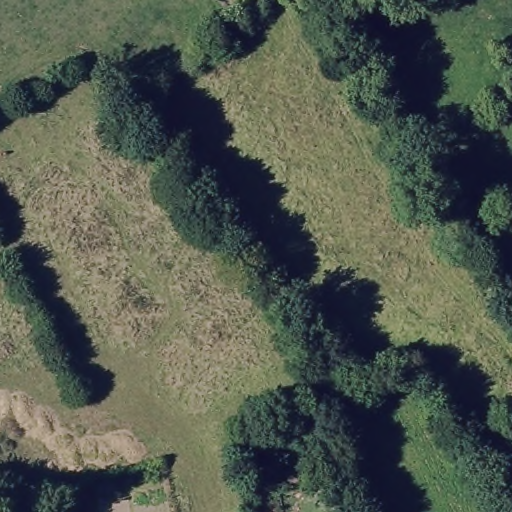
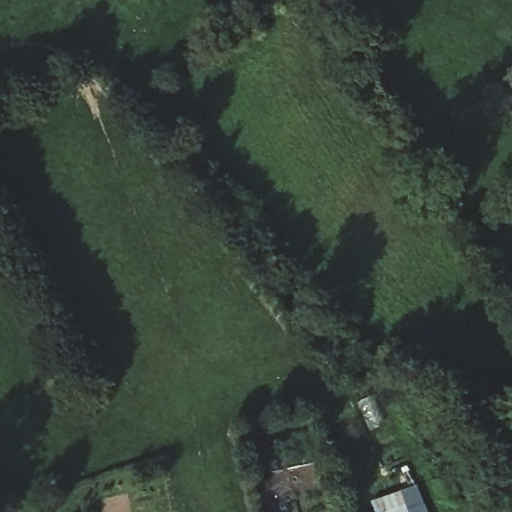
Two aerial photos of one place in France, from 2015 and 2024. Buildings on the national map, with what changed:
new [(425,512),(373,512),(370,502),(416,487),(425,512)]

